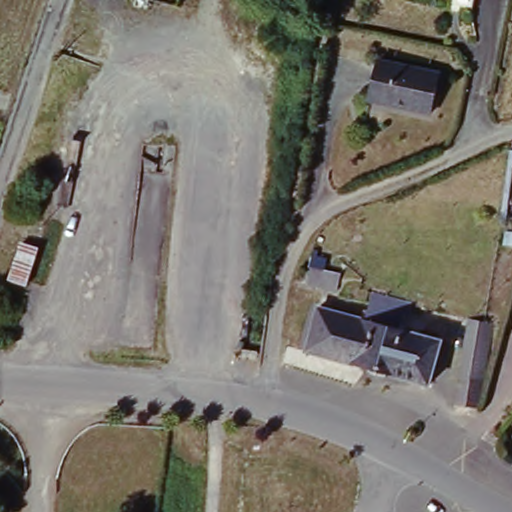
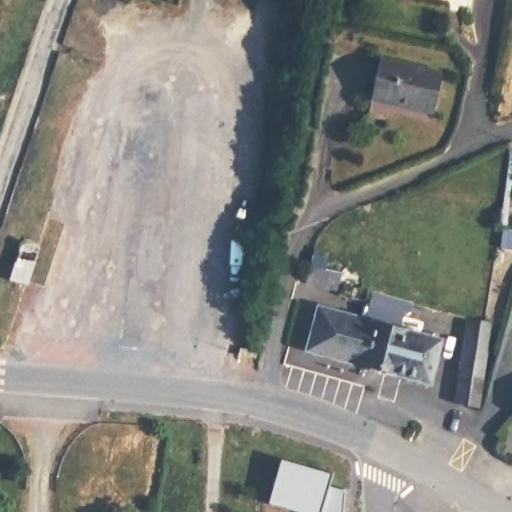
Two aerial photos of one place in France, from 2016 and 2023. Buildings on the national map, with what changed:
unchanged [(152,5),(140,2),(140,0),(153,0),(152,5)]
unchanged [(445,72),(437,111),(374,97),(383,56),(445,72)]
unchanged [(39,249),(26,285),(10,281),(23,244),(39,249)]
unchanged [(308,267),(339,274),(335,291),(304,285),(306,279),(308,267)]
unchanged [(413,310),(408,309),(404,326),(444,335),(433,378),(311,348),(322,306),(367,317),(372,296),(414,303),(413,310)]
unchanged [(453,404),(465,319),(482,323),(490,325),(479,408),(453,404)]
new [(327,487),(347,492),(344,512),(287,512),(264,506),(279,461),(330,475),(327,487)]

